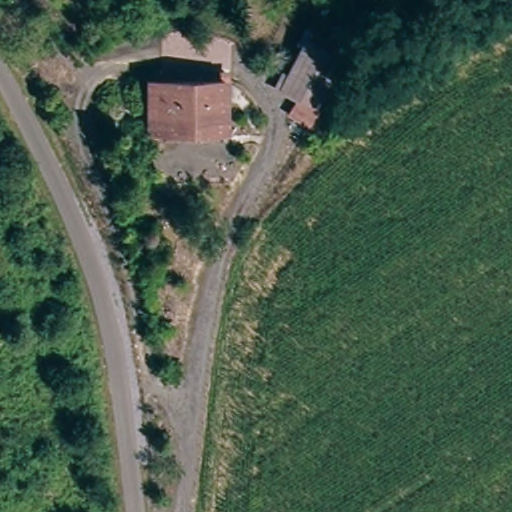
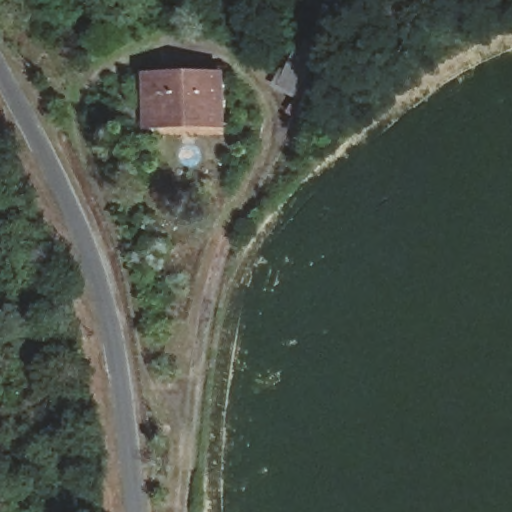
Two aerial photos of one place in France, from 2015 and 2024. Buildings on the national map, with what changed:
unchanged [(310,121),(288,113),(298,94),(278,82),(306,25),(324,32),(334,19),(354,30),(310,121)]
unchanged [(151,115),(151,79),(219,79),(219,126),(193,126),(150,127),(151,115)]

